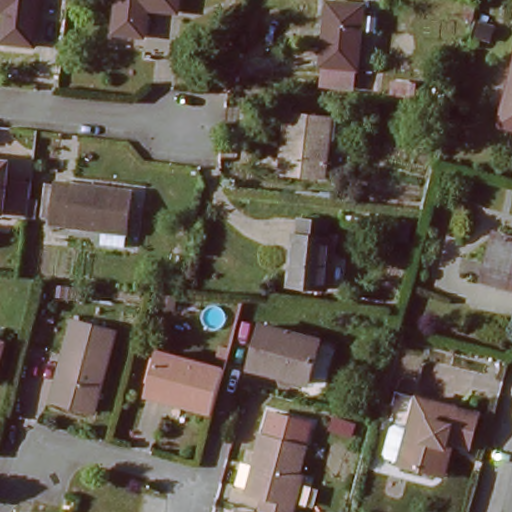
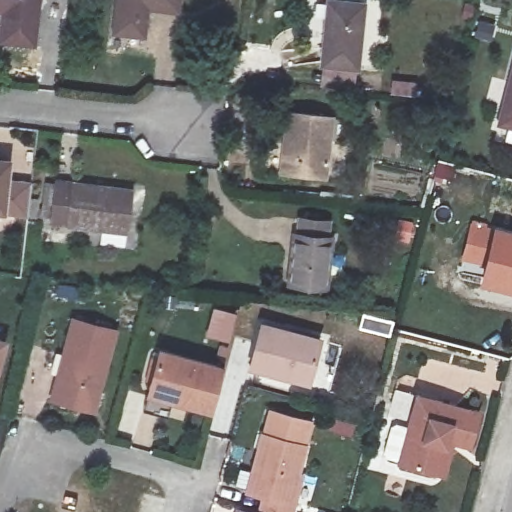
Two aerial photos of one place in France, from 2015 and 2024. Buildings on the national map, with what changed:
unchanged [(0,41),(0,16),(1,12),(0,12),(0,0),(37,0),(31,45),(0,41)]
unchanged [(147,8),(143,37),(114,34),(119,0),(179,0),(178,12),(147,8)]
unchanged [(364,7),(355,72),(320,67),(328,3),(364,7)]
unchanged [(512,63),(512,128),(494,122),(512,63)]
unchanged [(331,116),(324,176),(282,171),(284,144),(288,144),(292,112),(331,116)]
unchanged [(0,219),(0,160),(14,162),(12,184),(8,220),(0,219)]
unchanged [(90,238),(92,226),(47,221),(51,178),(126,187),(121,230),(117,229),(116,241),(90,238)]
unchanged [(12,184),(40,187),(36,223),(8,220),(12,184)]
unchanged [(324,300),(285,296),(293,225),(331,229),(324,300)]
unchanged [(485,282),(499,236),(512,239),(512,290),(485,282)]
unchanged [(59,285),(87,288),(86,301),(56,298),(59,285)]
unchanged [(93,415),(52,405),(73,324),(114,335),(93,415)]
unchanged [(307,386),(250,370),(262,327),(320,343),(307,386)]
unchanged [(0,339),(0,333),(2,333),(0,339)]
unchanged [(176,402),(174,410),(146,402),(159,355),(223,372),(213,412),(176,402)]
unchanged [(430,474),(397,465),(400,455),(388,452),(395,423),(407,427),(417,392),(483,410),(474,450),(456,446),(448,479),(430,474)]
unchanged [(257,509),(261,493),(244,489),(259,432),(301,445),(287,496),(291,497),(287,512),(267,512),(257,509)]
unchanged [(311,510),(318,512),(310,512),(311,510)]
unchanged [(232,511),(237,512),(231,512),(232,511)]

